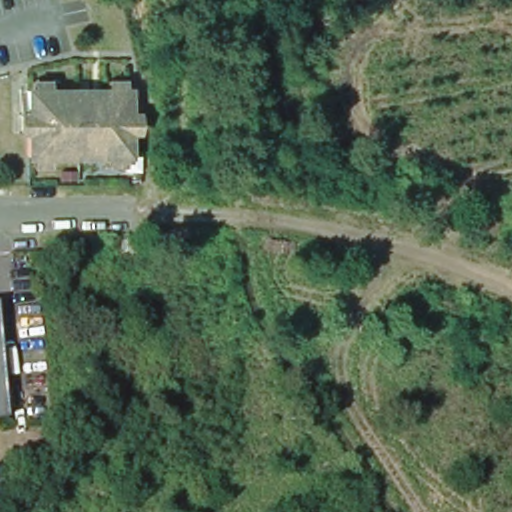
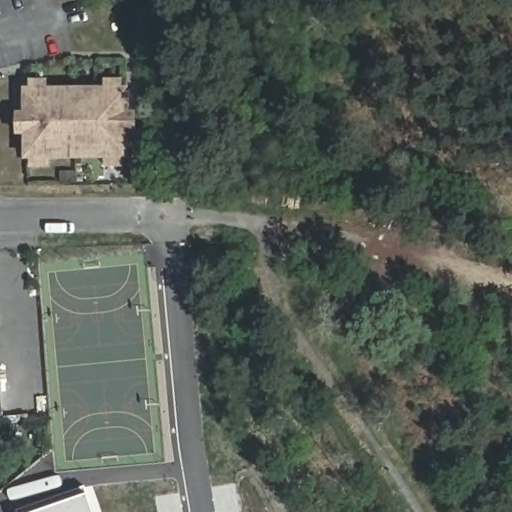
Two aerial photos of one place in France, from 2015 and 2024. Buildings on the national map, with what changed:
unchanged [(106,156),(102,156),(102,154),(52,153),(52,155),(47,155),(47,164),(30,164),(30,155),(27,155),(27,90),(30,90),(30,80),(47,80),(47,90),(51,90),(51,92),(102,92),(102,90),(105,90),(105,81),(122,81),(122,90),(126,90),(127,156),(122,156),(122,165),(106,165),(106,156)]
unchanged [(0,418),(0,367),(5,417),(0,418)]
new [(94,512),(17,512),(17,510),(85,486),(89,495),(94,512)]

